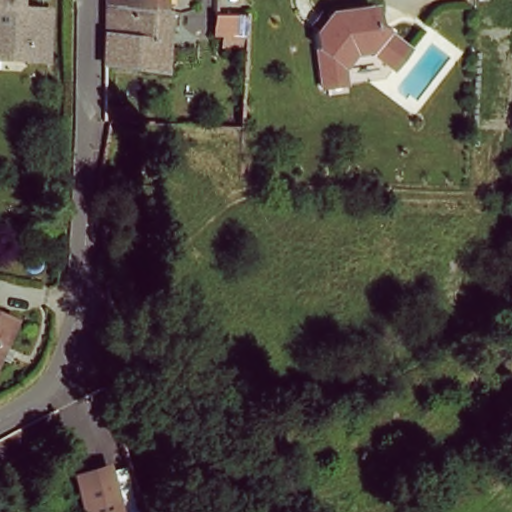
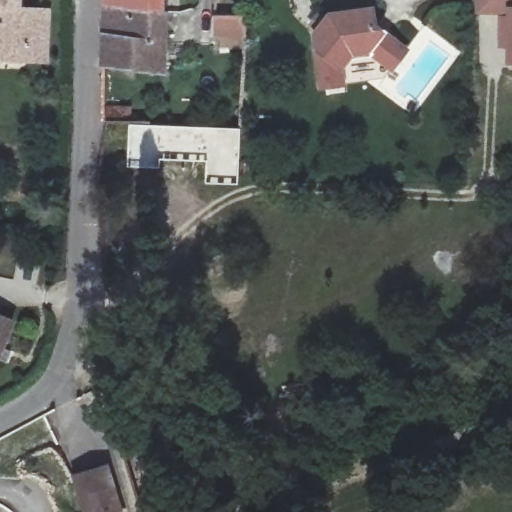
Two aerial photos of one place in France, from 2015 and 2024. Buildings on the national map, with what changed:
unchanged [(50,7),(47,62),(0,58),(0,0),(22,0),(22,5),(50,7)]
unchanged [(106,0),(163,0),(163,11),(105,5),(106,0)]
new [(503,15),(474,13),(475,0),(512,0),(512,65),(502,64),(503,15)]
unchanged [(166,11),(164,72),(103,65),(105,5),(163,11),(166,11)]
unchanged [(365,5),(368,25),(402,50),(384,73),(362,57),(347,58),(336,70),(338,88),(309,90),(302,33),(305,30),(300,26),(310,11),(315,16),(319,10),(365,5)]
unchanged [(213,35),(215,14),(247,14),(245,37),(213,35)]
new [(127,122),(240,127),(237,185),(202,183),(203,163),(161,161),(160,168),(124,167),(127,122)]
unchanged [(12,318),(0,357),(0,314),(12,318)]
unchanged [(124,512),(82,512),(73,475),(110,464),(124,512)]

